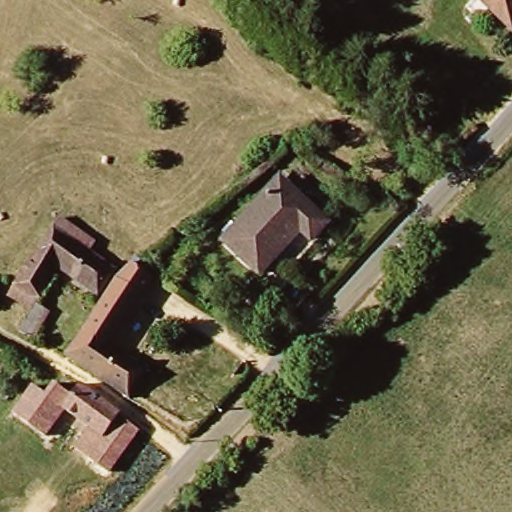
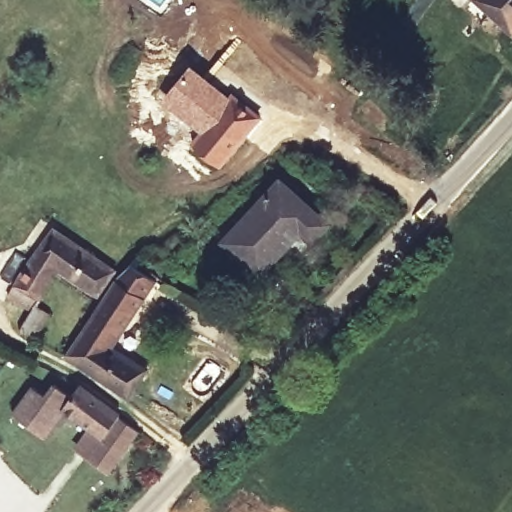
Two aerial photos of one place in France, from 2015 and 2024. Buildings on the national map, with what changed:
unchanged [(484,0),(512,0),(512,26),(484,0)]
new [(191,63),(229,93),(232,89),(262,117),(218,168),(189,145),(197,134),(157,102),(191,63)]
unchanged [(307,241),(292,228),(256,269),(221,238),(275,179),(324,221),(307,241)]
unchanged [(97,296),(62,273),(46,297),(57,305),(34,342),(16,333),(30,312),(6,294),(53,229),(60,218),(95,244),(89,253),(114,271),(97,296)]
unchanged [(156,281),(112,348),(146,372),(126,400),(63,357),(119,274),(134,264),(156,281)]
unchanged [(69,394),(79,383),(120,415),(102,438),(87,428),(64,410),(41,392),(47,385),(52,387),(57,384),(69,394)]
unchanged [(45,439),(10,414),(32,386),(41,392),(64,410),(45,439)]
unchanged [(142,431),(109,474),(75,448),(87,428),(102,438),(120,415),(142,431)]

